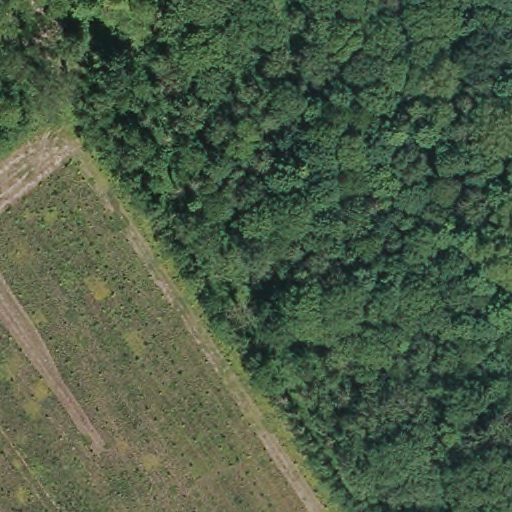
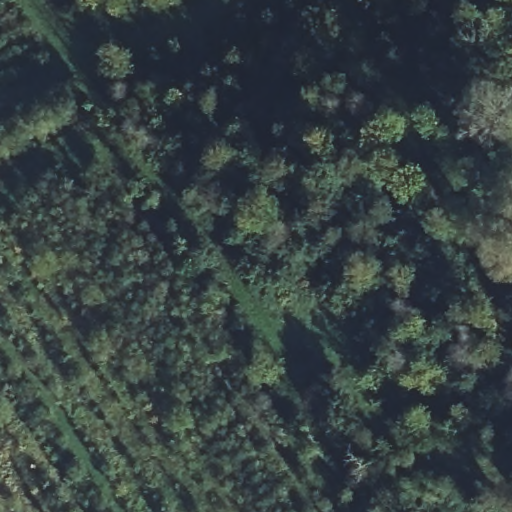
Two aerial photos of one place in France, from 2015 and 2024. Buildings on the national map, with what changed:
unchanged [(447,203),(442,184),(472,175),(478,190),(447,203)]

